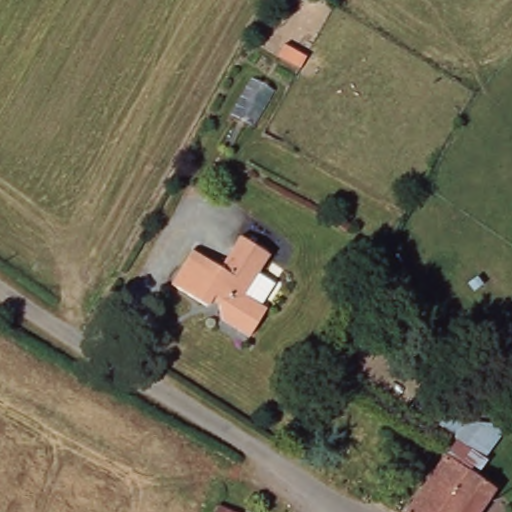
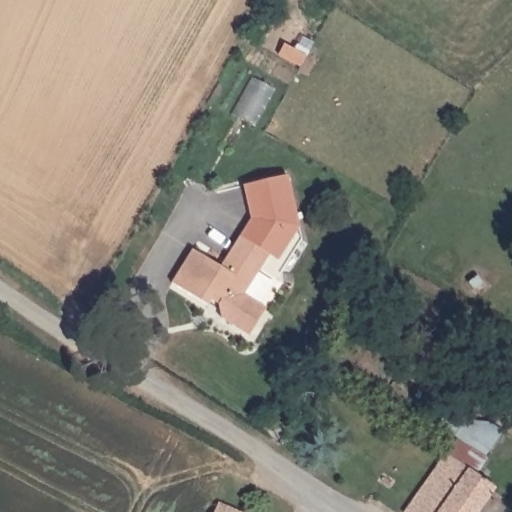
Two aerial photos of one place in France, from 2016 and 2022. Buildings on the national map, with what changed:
new [(266,254),(269,249),(242,234),(250,219),(244,186),(287,176),(299,226),(278,260),(266,254)]
unchanged [(236,330),(223,322),(226,305),(230,297),(219,291),(212,302),(177,281),(197,250),(220,263),(240,233),(269,249),(243,292),(268,307),(256,326),(249,338),(236,330)]
unchanged [(494,483),(474,512),(408,512),(404,509),(446,449),(494,483)]
unchanged [(232,512),(214,512),(217,505),(232,512)]

